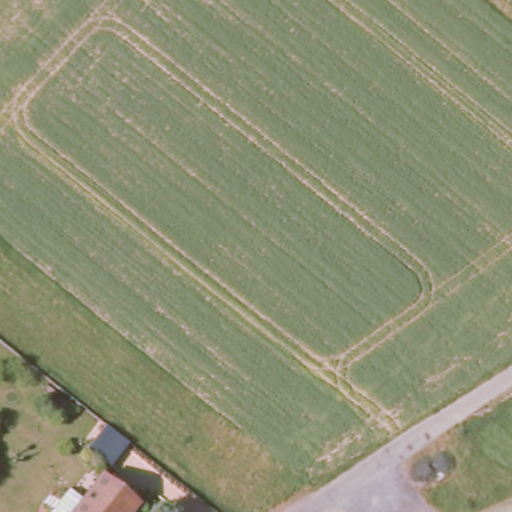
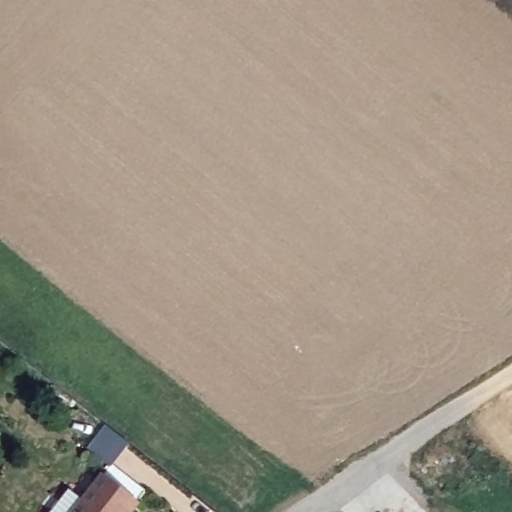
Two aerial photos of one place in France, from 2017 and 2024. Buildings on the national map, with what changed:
unchanged [(120,470),(97,452),(114,431),(137,449),(120,470)]
unchanged [(105,475),(135,502),(127,512),(48,512),(67,491),(80,503),(105,475)]

